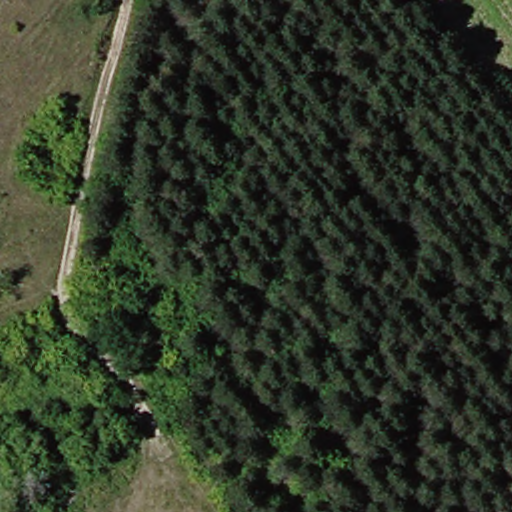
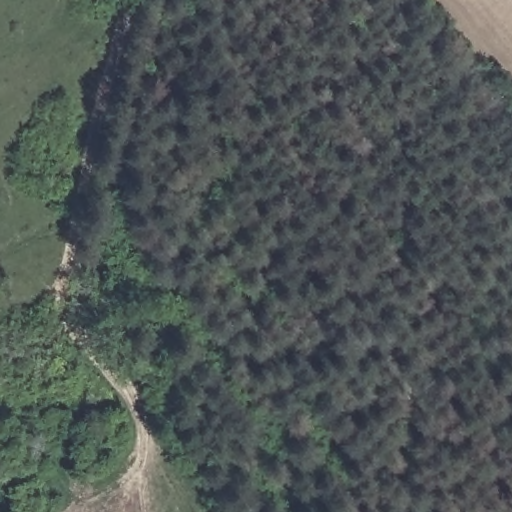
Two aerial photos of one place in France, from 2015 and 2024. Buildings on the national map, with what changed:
[]

